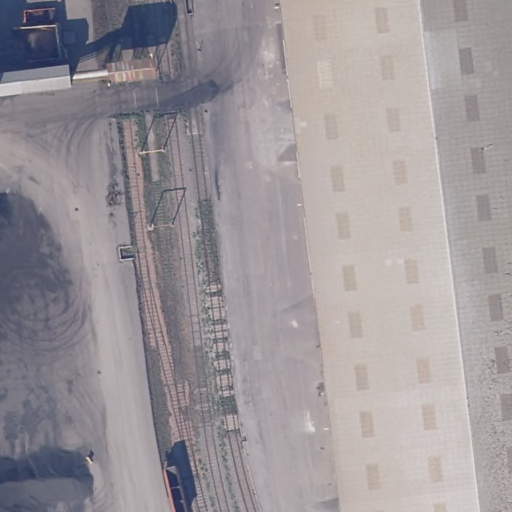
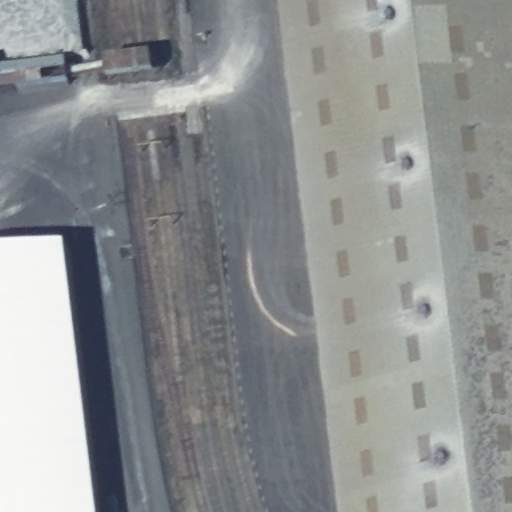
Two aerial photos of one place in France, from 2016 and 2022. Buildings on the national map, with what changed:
unchanged [(512,512),(342,512),(281,0),(512,0),(512,512)]
unchanged [(161,75),(113,80),(111,58),(159,53),(161,75)]
unchanged [(72,86),(0,94),(0,70),(69,63),(72,86)]
new [(105,512),(0,512),(0,260),(72,251),(105,512)]

